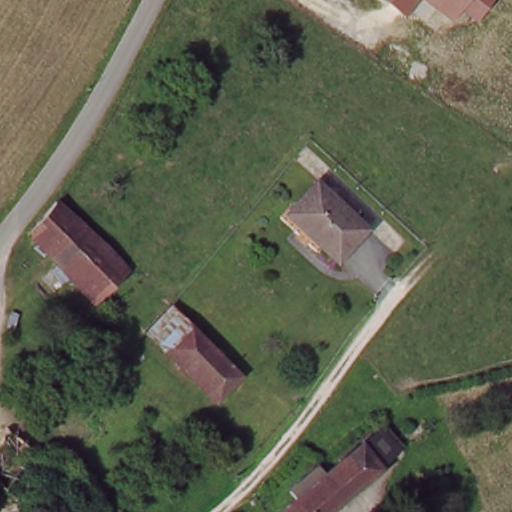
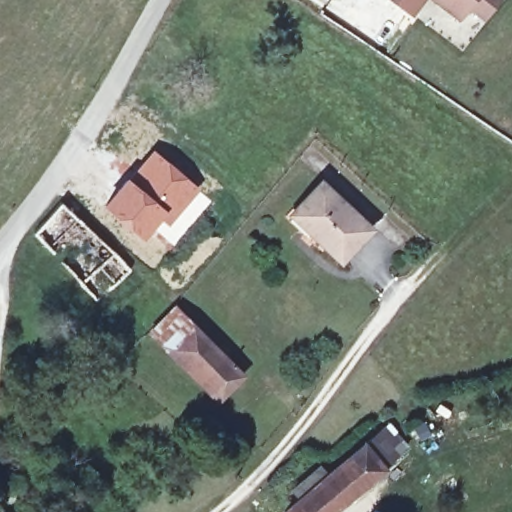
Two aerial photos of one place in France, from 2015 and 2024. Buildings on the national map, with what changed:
new [(463,5),(457,0),(467,0),(463,5)]
new [(489,5),(483,0),(493,0),(489,5)]
new [(186,230),(182,227),(184,225),(179,220),(177,221),(176,220),(168,227),(159,219),(142,238),(103,205),(153,147),(200,188),(212,200),(186,230)]
unchanged [(375,230),(347,259),(333,245),(327,251),(292,217),(325,182),(375,230)]
unchanged [(90,232),(107,246),(126,275),(97,301),(31,229),(55,201),(90,232)]
unchanged [(211,406),(161,350),(147,335),(172,307),(187,325),(238,382),(211,406)]
demolished [(7,512),(0,506),(0,434),(2,431),(39,460),(9,512),(7,512)]
unchanged [(333,512),(283,512),(282,511),(299,499),(293,491),(322,468),(329,475),(384,432),(404,457),(333,512)]

